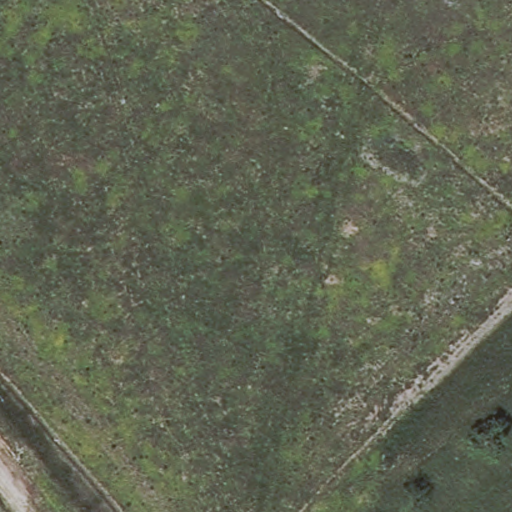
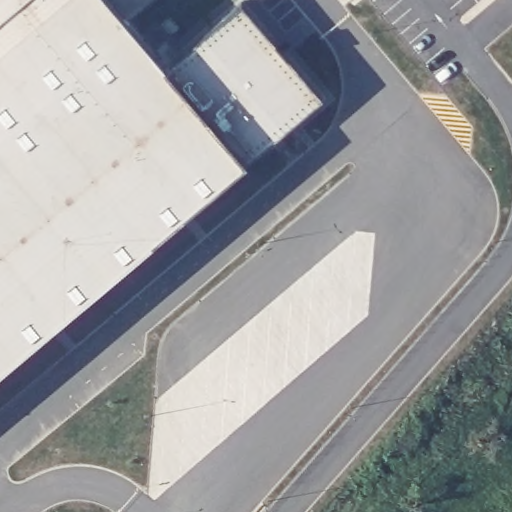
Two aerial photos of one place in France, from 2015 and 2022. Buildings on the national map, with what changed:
new [(244,173),(0,381),(0,0),(100,0),(170,81),(244,173)]

